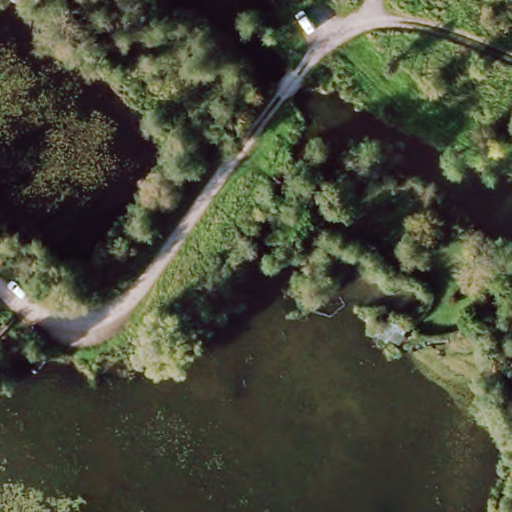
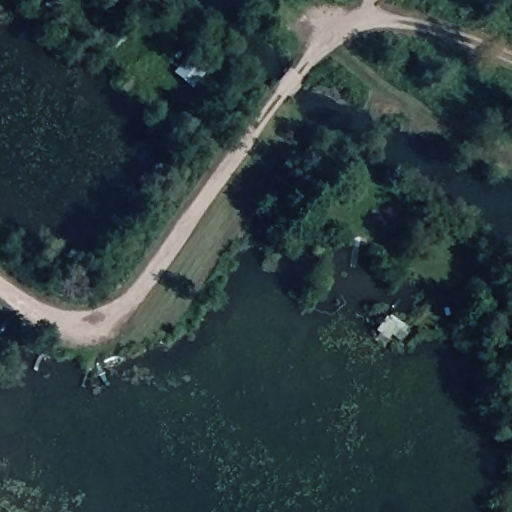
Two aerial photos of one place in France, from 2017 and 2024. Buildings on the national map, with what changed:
unchanged [(169,72),(178,78),(174,85),(165,79),(169,72)]

